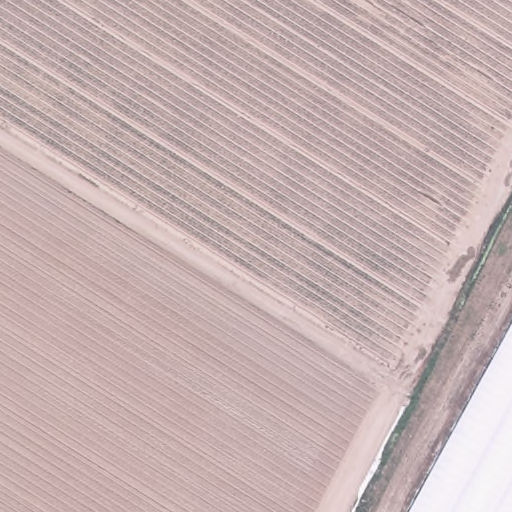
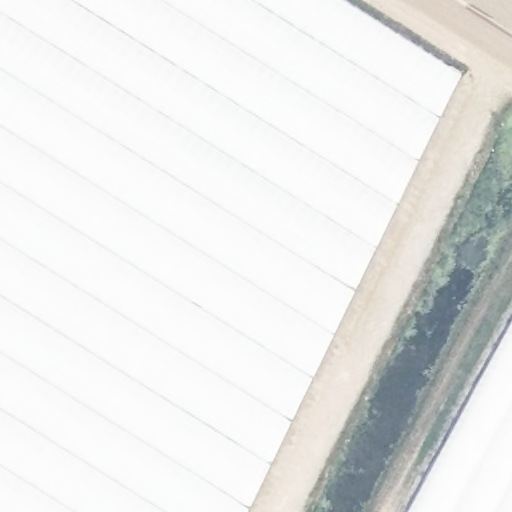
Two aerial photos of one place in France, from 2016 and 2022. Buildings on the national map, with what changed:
new [(0,0),(341,0),(463,76),(251,512),(0,512),(0,0)]
unchanged [(512,339),(512,512),(419,512),(512,339)]

